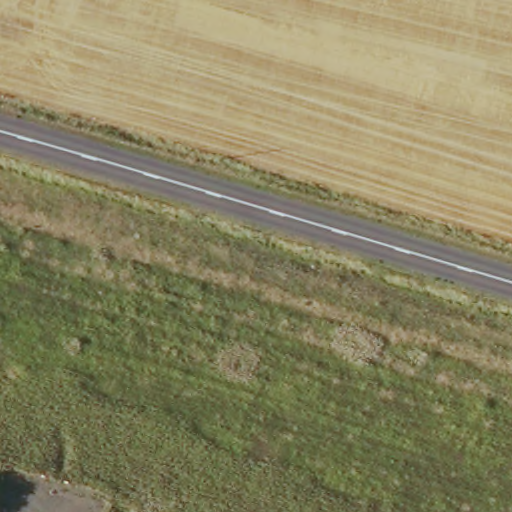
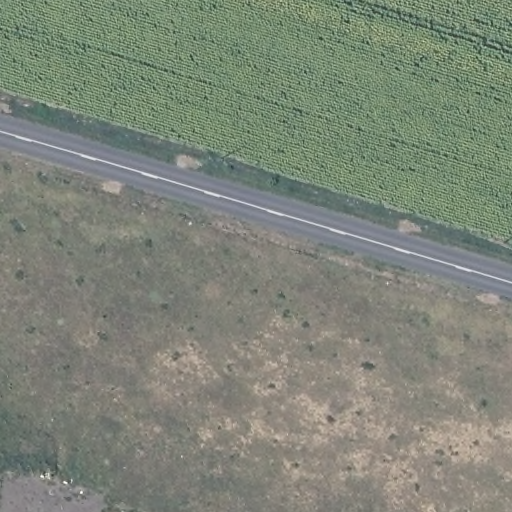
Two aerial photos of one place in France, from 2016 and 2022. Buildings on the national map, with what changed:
[]

